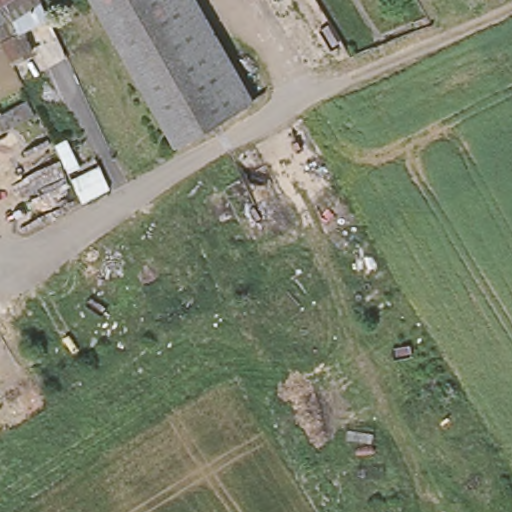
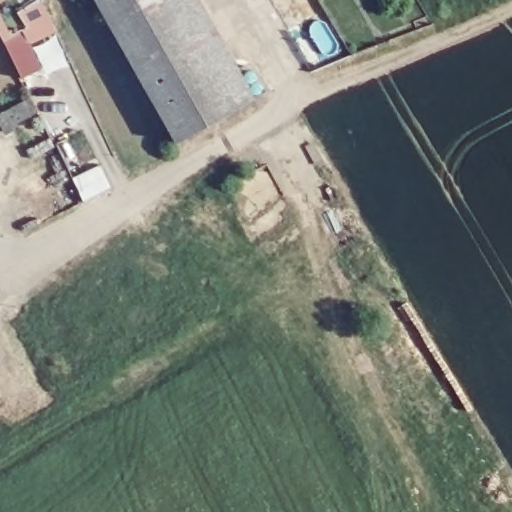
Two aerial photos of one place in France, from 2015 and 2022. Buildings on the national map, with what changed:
unchanged [(27,0),(9,11),(0,16),(0,0),(27,0)]
unchanged [(166,139),(96,0),(173,0),(228,107),(166,139)]
unchanged [(59,16),(62,21),(55,25),(53,20),(59,16)]
unchanged [(28,100),(34,112),(0,129),(0,113),(28,100)]

